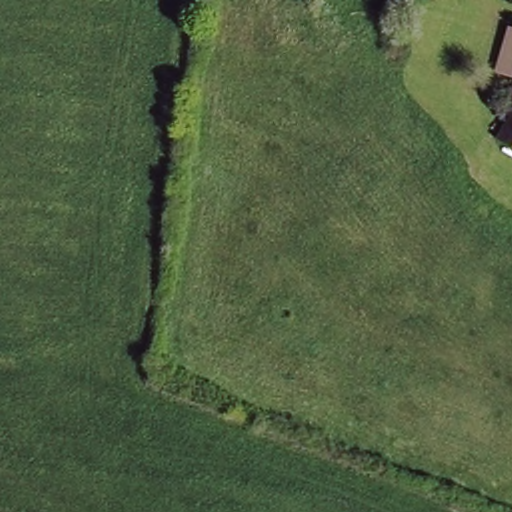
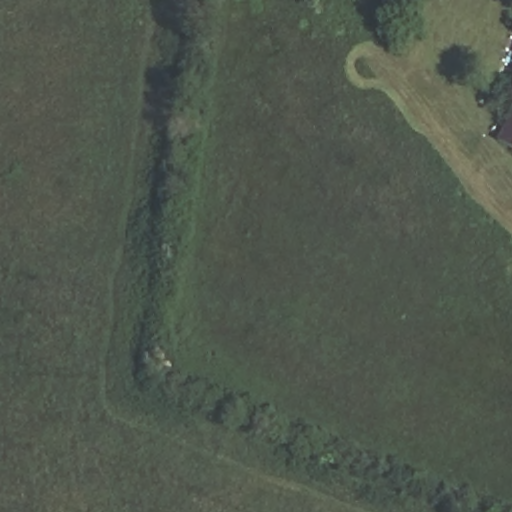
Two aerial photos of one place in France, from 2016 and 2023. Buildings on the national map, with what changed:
unchanged [(510,92),(512,87),(512,92),(510,92)]
unchanged [(502,147),(512,112),(512,150),(502,147)]

